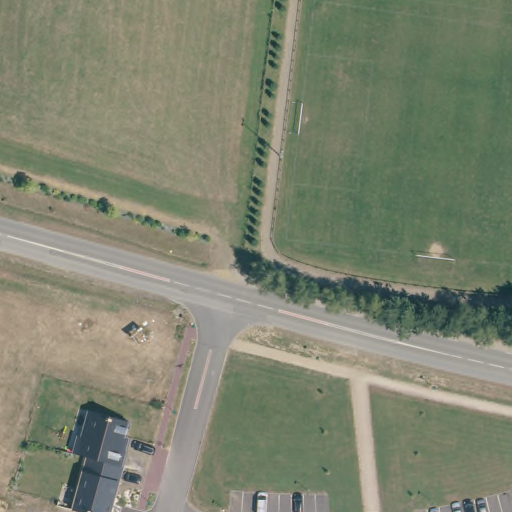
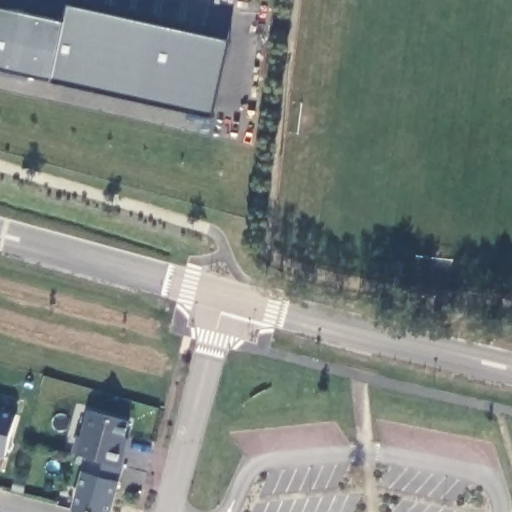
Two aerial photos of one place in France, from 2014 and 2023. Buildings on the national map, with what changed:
new [(70,7),(229,40),(213,117),(50,82),(0,70),(0,9),(66,24),(70,7)]
new [(0,457),(0,409),(17,413),(5,458),(0,457)]
unchanged [(129,422),(125,439),(127,440),(120,466),(124,467),(111,512),(76,512),(71,511),(86,456),(77,453),(90,411),(129,422)]

